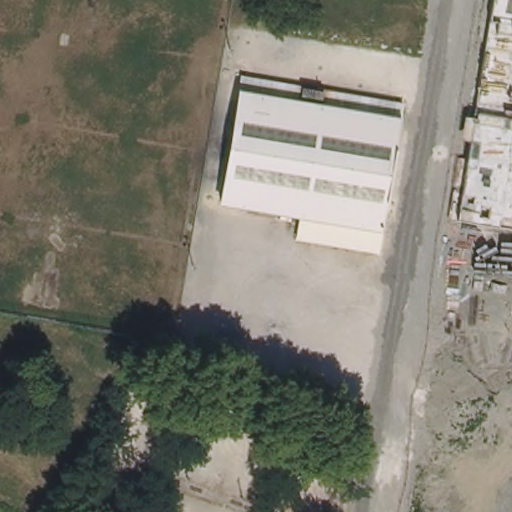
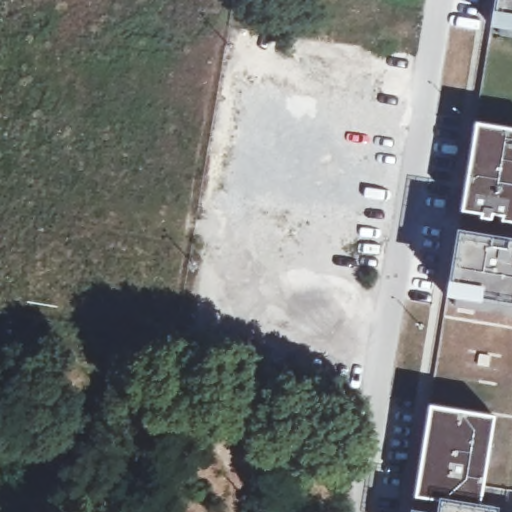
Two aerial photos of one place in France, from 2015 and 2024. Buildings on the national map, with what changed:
new [(487,24),(490,6),(491,0),(512,0),(512,27),(487,24)]
demolished [(401,105),(376,250),(295,236),(299,215),(220,202),(241,78),(401,105)]
new [(474,121),(512,127),(512,222),(499,220),(499,215),(491,214),(490,219),(479,216),(479,211),(459,210),(474,121)]
new [(479,298),(446,293),(448,278),(456,231),(512,239),(512,303),(479,298)]
unchanged [(138,375),(124,370),(132,348),(146,353),(138,375)]
unchanged [(156,373),(161,360),(199,373),(194,387),(156,373)]
new [(436,498),(414,495),(428,405),(492,413),(476,505),(493,507),(492,512),(407,512),(408,506),(434,510),(436,498)]

